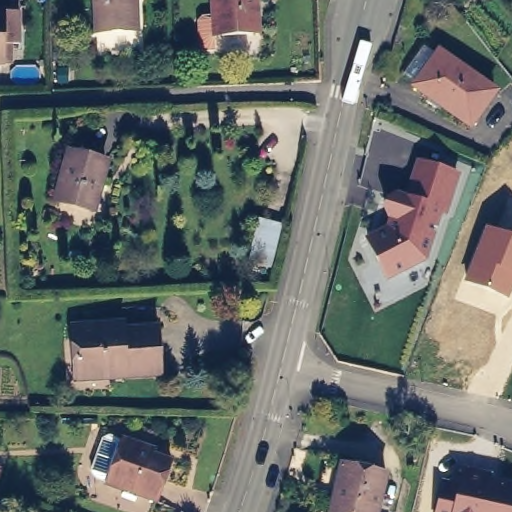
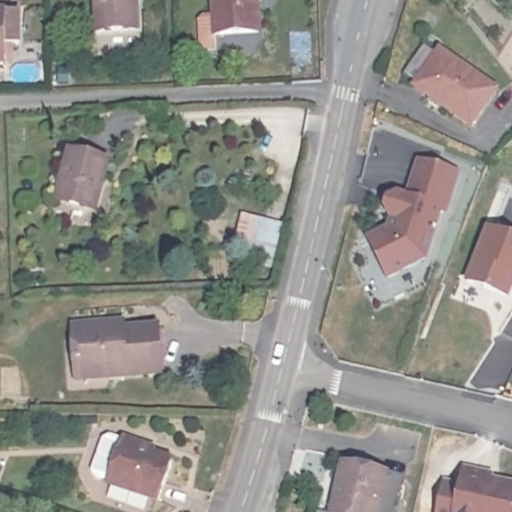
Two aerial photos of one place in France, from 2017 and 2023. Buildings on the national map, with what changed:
unchanged [(137,33),(97,34),(96,0),(135,0),(137,33)]
unchanged [(267,33),(223,35),(224,49),(212,50),(208,45),(207,20),(211,16),(222,15),(222,0),(265,0),(267,33)]
unchanged [(0,61),(0,13),(15,13),(15,44),(5,44),(5,61),(0,61)]
unchanged [(475,130),(418,90),(420,88),(408,79),(427,51),(440,59),(442,55),(498,96),(475,130)]
unchanged [(100,183),(97,183),(90,209),(57,199),(68,155),(105,164),(100,183)]
unchanged [(391,223),(383,211),(385,201),(396,193),(403,195),(415,159),(463,175),(447,221),(441,219),(425,263),(387,281),(366,237),(391,223)]
unchanged [(512,293),(510,300),(463,283),(484,226),(512,237),(512,293)]
unchanged [(80,372),(78,331),(125,329),(125,336),(160,334),(162,379),(111,382),(80,384),(80,372)]
unchanged [(106,488),(122,444),(141,451),(152,455),(151,460),(170,467),(157,506),(106,488)]
unchanged [(348,512),(325,506),(331,475),(327,475),(332,454),(377,464),(365,512),(348,512)]
unchanged [(462,468),(490,474),(488,479),(512,484),(512,512),(435,512),(440,480),(458,483),(462,468)]

